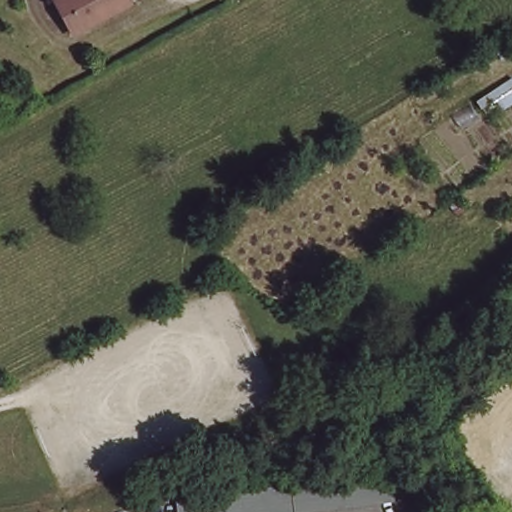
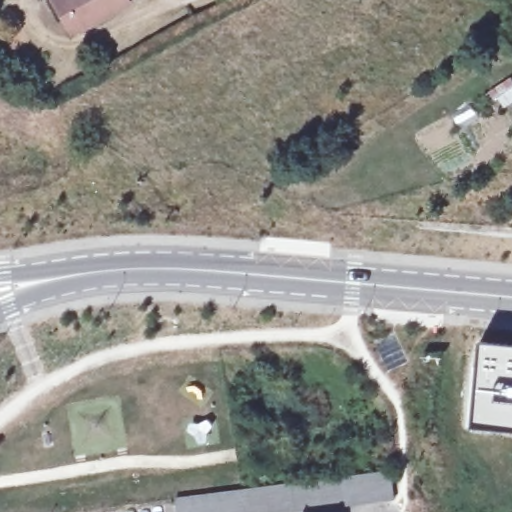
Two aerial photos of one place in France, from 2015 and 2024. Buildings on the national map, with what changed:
unchanged [(127,0),(132,8),(71,39),(52,3),(59,0),(128,0),(127,0)]
unchanged [(508,40),(512,38),(512,45),(508,40)]
new [(480,340),(512,343),(512,430),(470,427),(480,340)]
unchanged [(390,476),(395,502),(319,512),(178,512),(177,505),(177,502),(390,476)]

